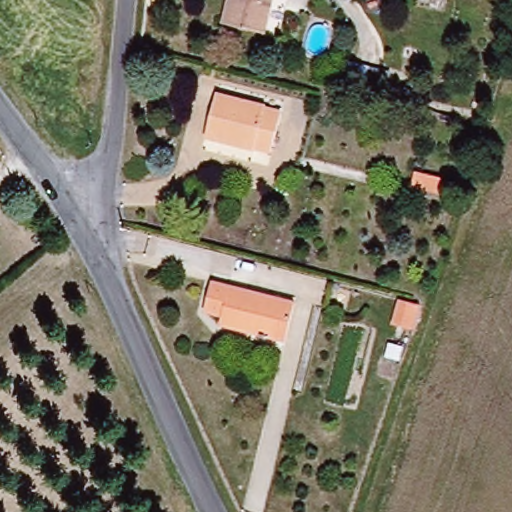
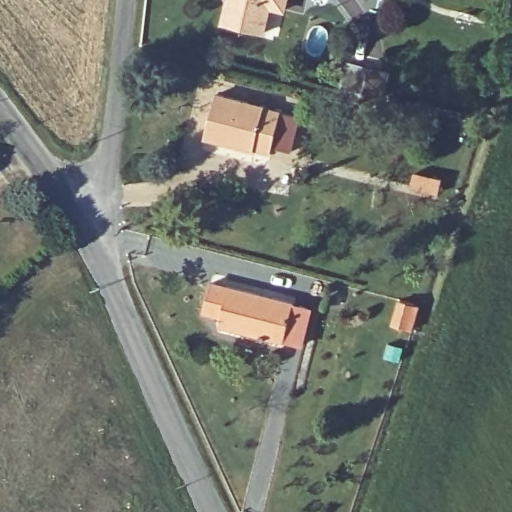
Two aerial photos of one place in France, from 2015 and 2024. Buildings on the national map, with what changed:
unchanged [(264,35),(226,25),(233,0),(272,0),(264,35)]
unchanged [(269,108),(268,112),(285,116),(276,151),(258,146),(257,150),(195,134),(204,93),(269,108)]
unchanged [(444,175),(440,191),(416,184),(419,169),(444,175)]
unchanged [(292,299),(284,345),(216,325),(219,315),(204,312),(213,278),(292,299)]
unchanged [(423,297),(415,324),(402,321),(406,293),(423,297)]

